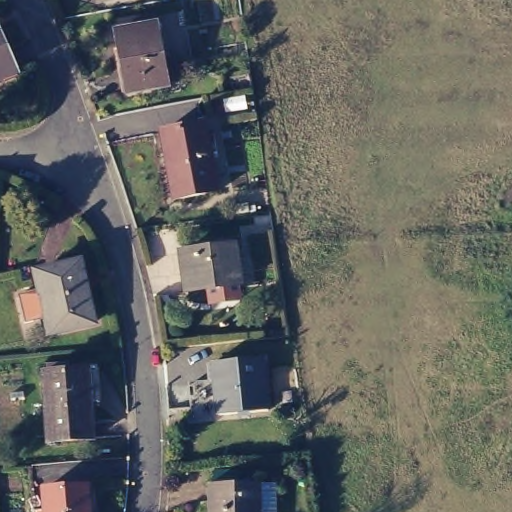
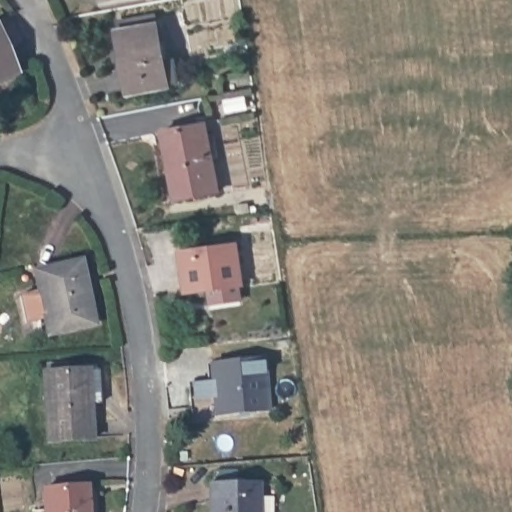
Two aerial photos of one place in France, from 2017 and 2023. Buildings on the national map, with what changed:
unchanged [(123,64),(118,29),(119,29),(118,18),(154,11),(156,22),(163,57),(173,56),(176,78),(167,80),(167,81),(131,87),(128,87),(123,64)]
unchanged [(0,67),(0,28),(6,42),(14,61),(9,63),(0,67)]
unchanged [(166,149),(161,127),(206,120),(218,187),(179,194),(174,195),(166,149)]
unchanged [(216,237),(233,235),(234,241),(236,241),(241,280),(186,287),(183,268),(181,248),(184,247),(216,243),(216,237)]
unchanged [(85,254),(99,314),(55,323),(52,309),(31,313),(26,287),(46,282),(43,263),(85,254)]
unchanged [(207,354),(259,348),(264,401),(212,406),(207,354)]
unchanged [(41,360),(63,358),(64,367),(83,366),(83,367),(94,366),(95,384),(96,399),(86,400),(89,433),(49,437),(46,391),(41,391),(39,368),(42,368),(41,360)]
unchanged [(256,512),(205,512),(204,475),(255,474),(256,512)]
unchanged [(44,501),(43,481),(88,476),(91,512),(36,512),(35,502),(44,501)]

